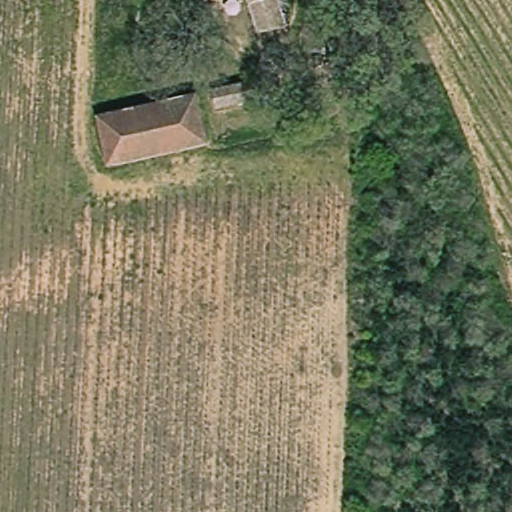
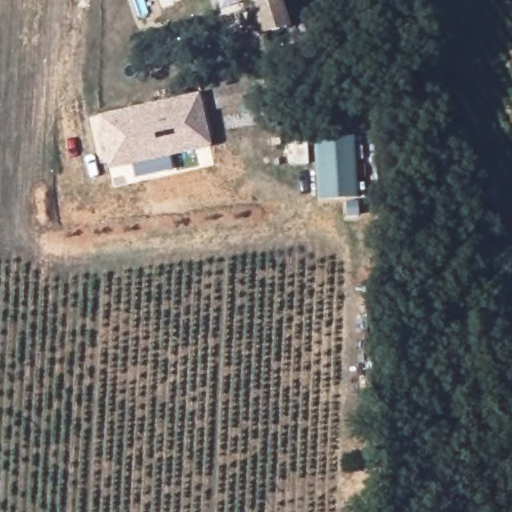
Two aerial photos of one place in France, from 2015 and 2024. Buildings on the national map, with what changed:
unchanged [(255,0),(281,0),(288,24),(264,28),(255,0)]
unchanged [(270,83),(272,100),(210,112),(206,95),(270,83)]
unchanged [(191,96),(202,143),(105,164),(95,117),(191,96)]
new [(354,136),(356,197),(317,199),(314,138),(354,136)]

